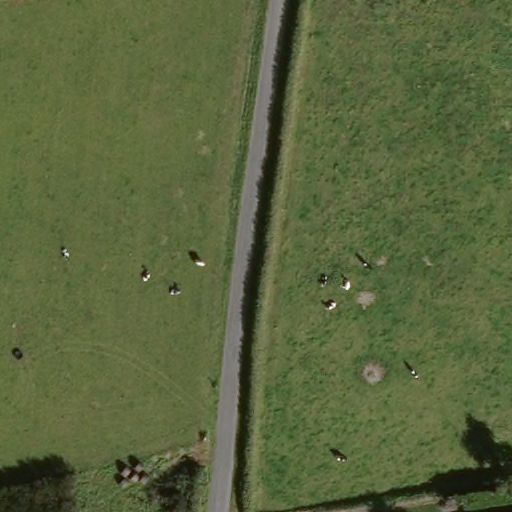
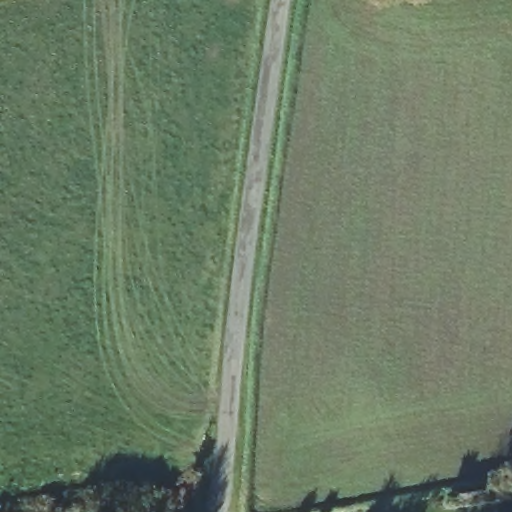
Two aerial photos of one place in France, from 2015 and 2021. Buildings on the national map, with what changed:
[]

